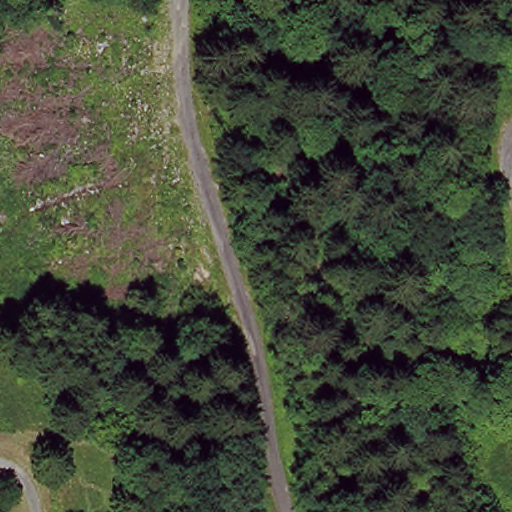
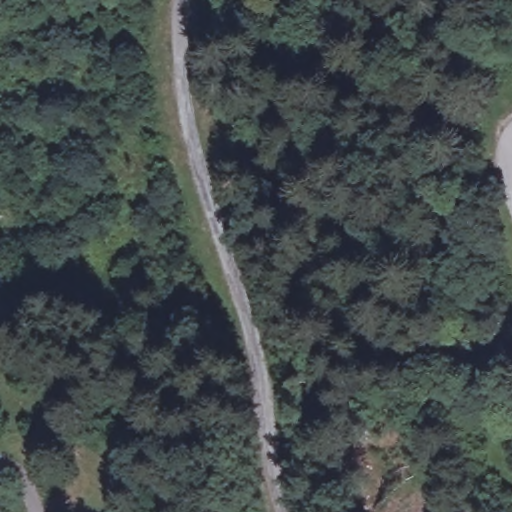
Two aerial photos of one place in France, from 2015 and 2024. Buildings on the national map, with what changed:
[]

